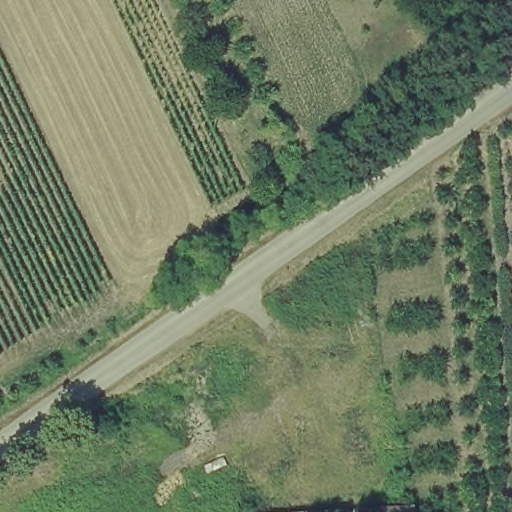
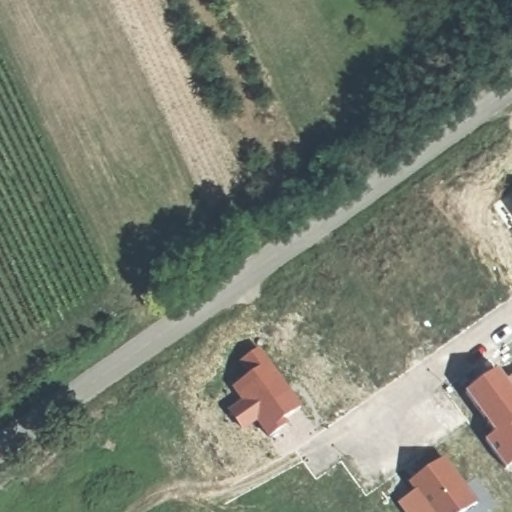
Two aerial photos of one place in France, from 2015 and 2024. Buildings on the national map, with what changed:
new [(306,410),(269,435),(258,421),(248,430),(234,409),(246,399),(236,387),(271,363),(306,410)]
new [(506,379),(512,374),(512,466),(505,471),(483,441),(493,434),(464,392),(498,369),(506,379)]
new [(477,512),(403,512),(401,507),(417,492),(413,485),(446,458),(484,507),(477,512)]
demolished [(412,512),(315,512),(412,507),(412,512)]

